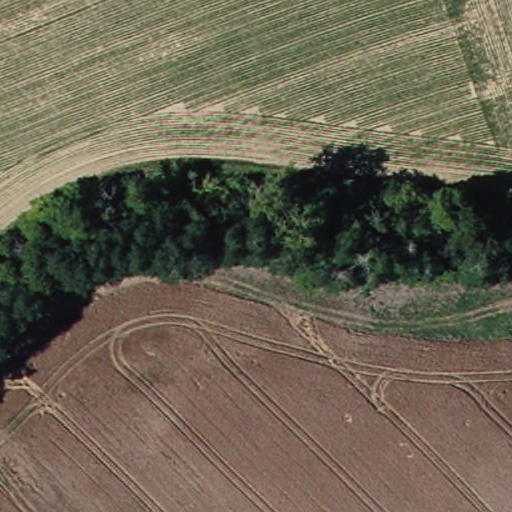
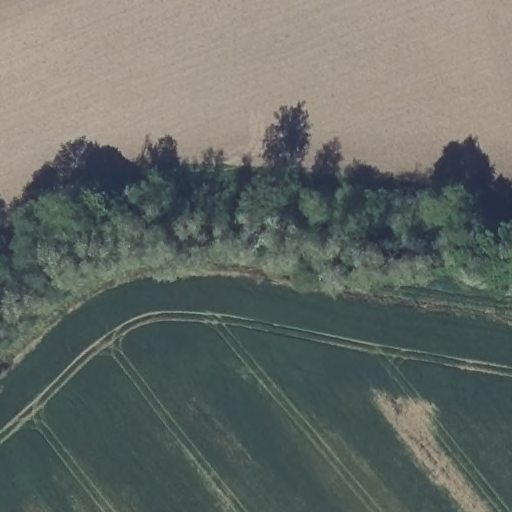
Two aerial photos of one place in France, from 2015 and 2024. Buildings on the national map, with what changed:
[]

